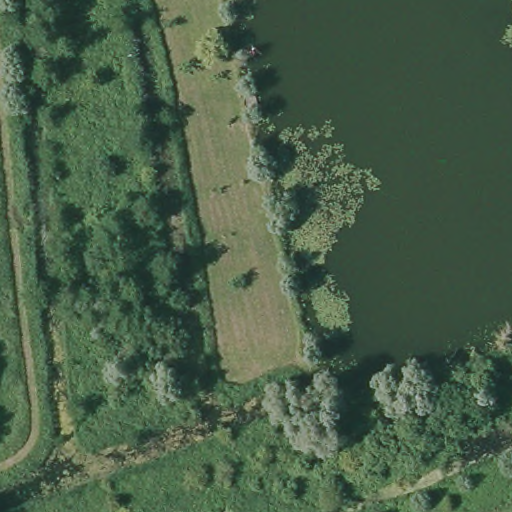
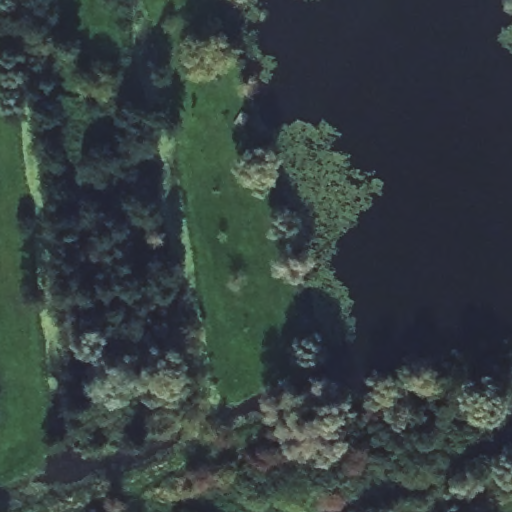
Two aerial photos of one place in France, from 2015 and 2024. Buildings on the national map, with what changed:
[]

